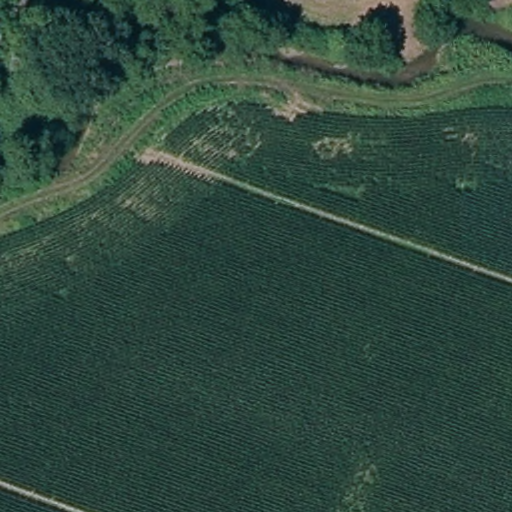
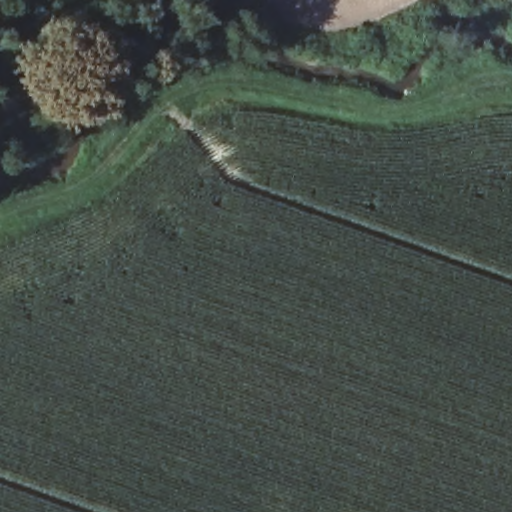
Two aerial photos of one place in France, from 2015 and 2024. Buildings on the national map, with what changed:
[]

